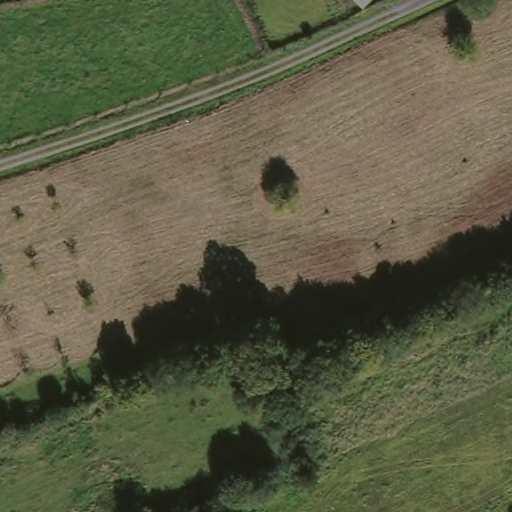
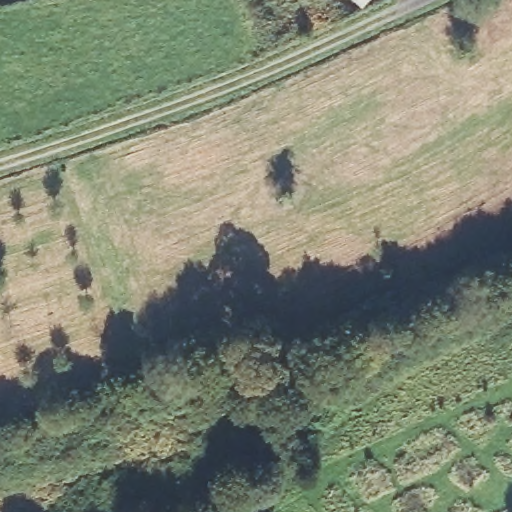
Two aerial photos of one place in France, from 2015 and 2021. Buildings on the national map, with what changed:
unchanged [(364,4),(361,0),(369,0),(364,4)]

